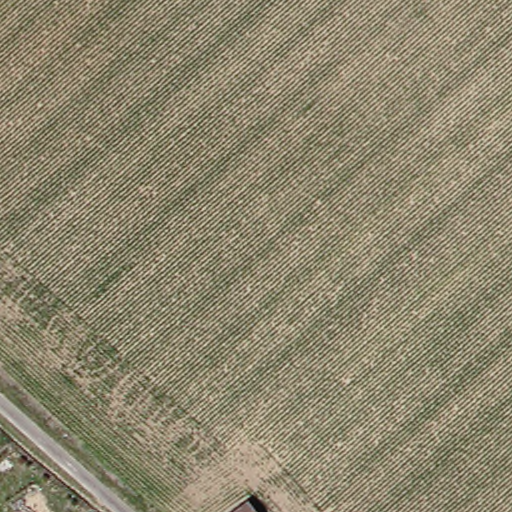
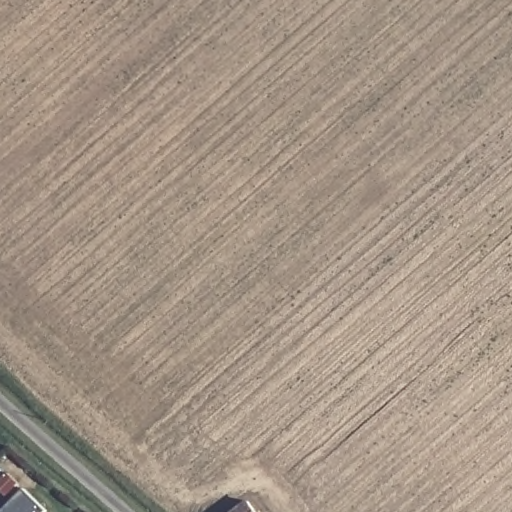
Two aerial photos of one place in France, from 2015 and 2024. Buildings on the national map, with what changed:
new [(46,512),(3,512),(25,490),(47,511),(46,512)]
unchanged [(246,512),(258,502),(266,512),(246,512)]

